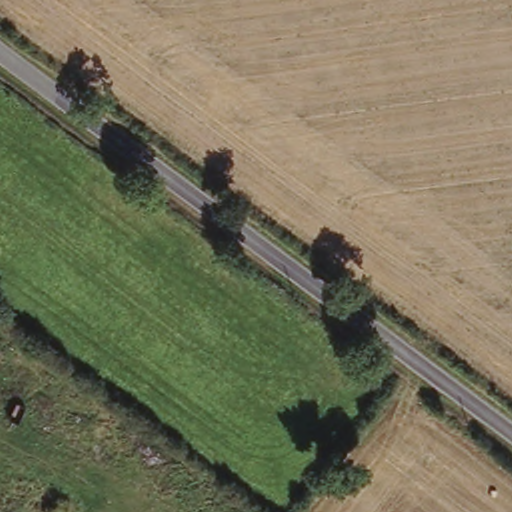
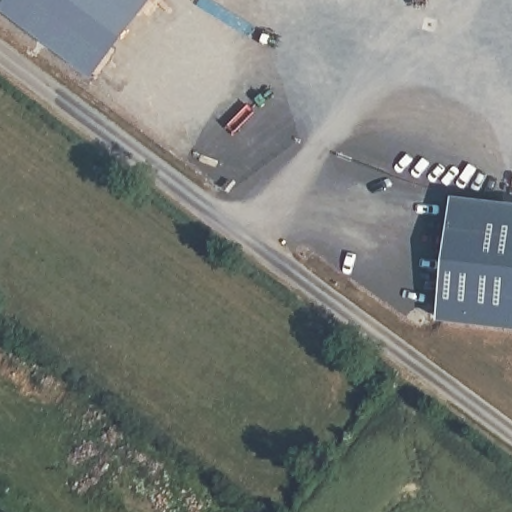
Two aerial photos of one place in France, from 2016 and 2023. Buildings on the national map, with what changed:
new [(151,2),(87,86),(0,19),(0,0),(148,0),(151,2)]
new [(512,212),(512,335),(422,322),(434,204),(512,212)]

